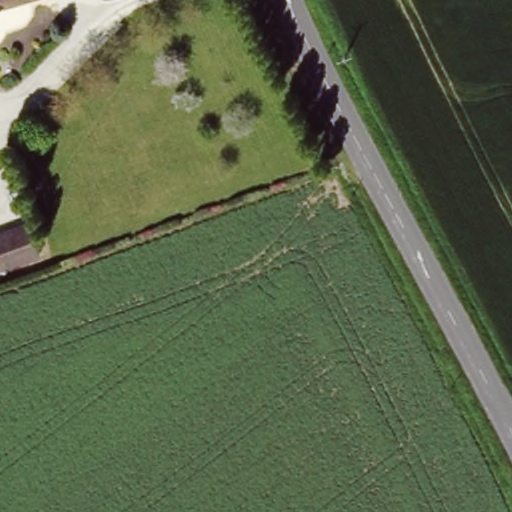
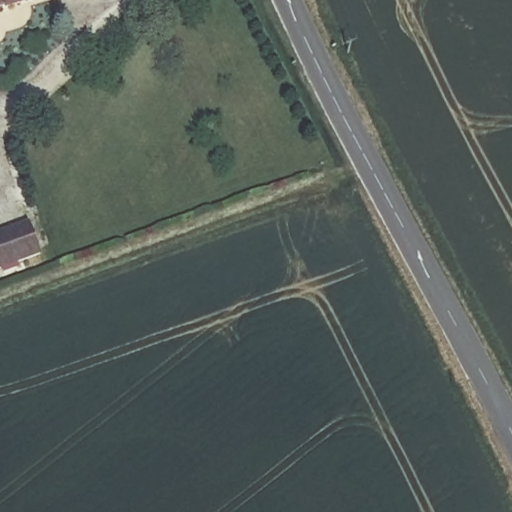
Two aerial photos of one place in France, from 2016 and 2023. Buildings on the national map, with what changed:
unchanged [(0,0),(23,0),(0,8),(0,0)]
unchanged [(41,255),(0,269),(0,233),(31,222),(41,255)]

